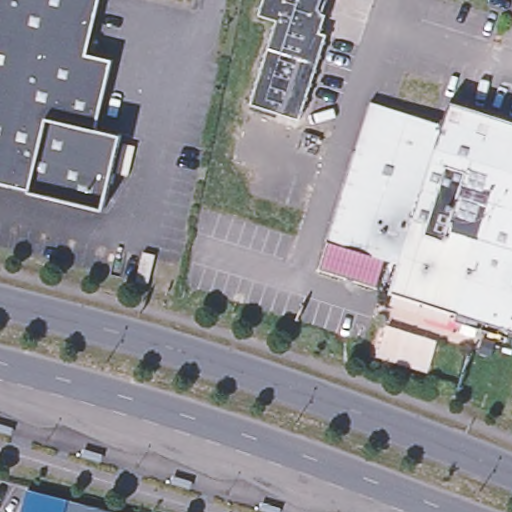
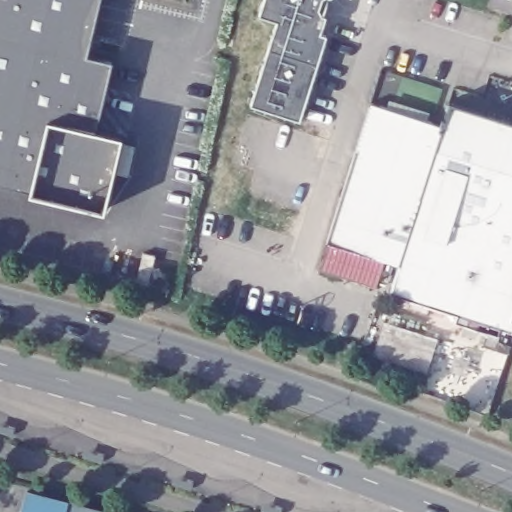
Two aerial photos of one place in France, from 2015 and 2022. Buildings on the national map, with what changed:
unchanged [(85,54),(111,60),(95,130),(120,136),(102,209),(26,191),(27,189),(0,182),(0,0),(99,0),(85,54)]
unchanged [(318,15),(324,21),(320,34),(326,36),(300,120),(253,105),(277,23),(259,17),(264,0),(323,0),(318,15)]
unchanged [(370,102),(443,125),(450,104),(512,124),(512,333),(390,295),(400,263),(326,240),(370,102)]
unchanged [(442,344),(433,374),(375,354),(385,325),(442,344)]
unchanged [(109,512),(65,512),(68,501),(109,512)]

